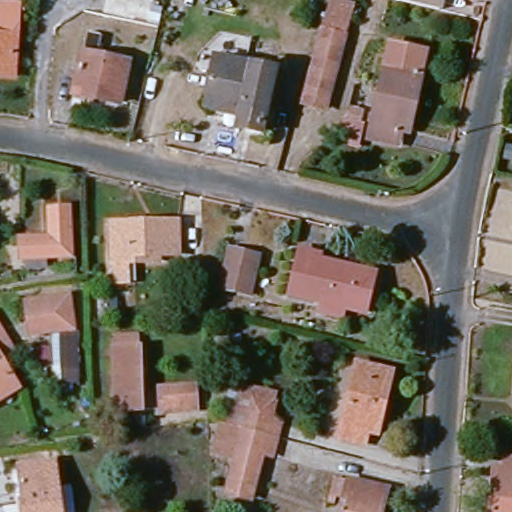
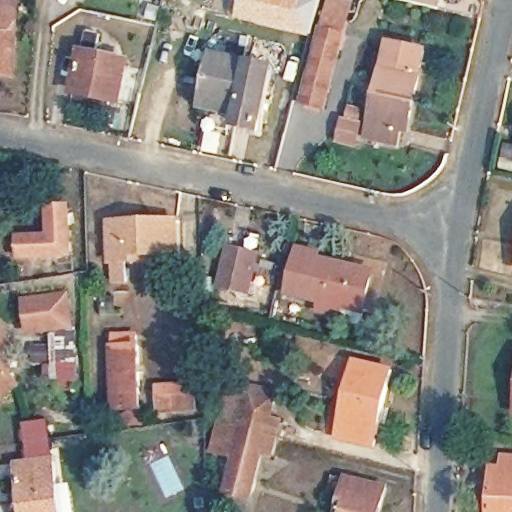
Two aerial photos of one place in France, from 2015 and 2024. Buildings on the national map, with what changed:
new [(239,0),(321,0),(319,14),(309,37),(234,19),(239,0)]
unchanged [(437,0),(433,15),(392,5),(394,0),(437,0)]
unchanged [(340,19),(319,103),(297,98),(319,14),(340,19)]
unchanged [(11,84),(0,84),(0,27),(14,27),(11,84)]
unchanged [(96,45),(92,66),(121,72),(113,111),(69,101),(81,42),(96,45)]
unchanged [(420,57),(402,135),(394,133),(390,149),(363,142),(384,48),(420,57)]
unchanged [(268,74),(253,135),(230,129),(232,121),(198,112),(210,60),(268,74)]
unchanged [(42,214),(63,212),(66,261),(16,264),(14,242),(44,240),(42,214)]
unchanged [(107,289),(106,267),(104,229),(170,226),(172,258),(153,259),(153,265),(122,267),(124,288),(107,289)]
unchanged [(256,254),(248,294),(218,288),(226,248),(256,254)]
unchanged [(313,258),(312,262),(368,276),(358,317),(336,311),(333,320),(315,316),(317,307),(284,299),(295,254),(313,258)]
unchanged [(68,296),(72,332),(75,389),(46,391),(41,338),(21,340),(15,300),(68,296)]
unchanged [(135,414),(110,414),(106,338),(132,338),(135,414)]
unchanged [(0,364),(0,350),(6,360),(0,364)]
unchanged [(390,370),(375,432),(365,430),(361,443),(337,437),(356,361),(390,370)]
unchanged [(243,385),(272,393),(269,402),(272,403),(268,419),(279,422),(275,436),(234,425),(243,385)]
unchanged [(190,413),(155,416),(153,391),(188,388),(190,413)]
unchanged [(0,399),(0,390),(4,397),(0,399)]
unchanged [(275,436),(271,455),(261,453),(249,497),(226,492),(234,456),(214,451),(222,422),(234,425),(275,436)]
unchanged [(499,473),(500,462),(512,463),(512,512),(486,512),(488,473),(499,473)]
unchanged [(52,495),(63,494),(65,512),(19,512),(14,472),(48,467),(52,495)]
unchanged [(380,512),(339,512),(342,501),(329,498),(333,480),(346,483),(384,493),(380,512)]

